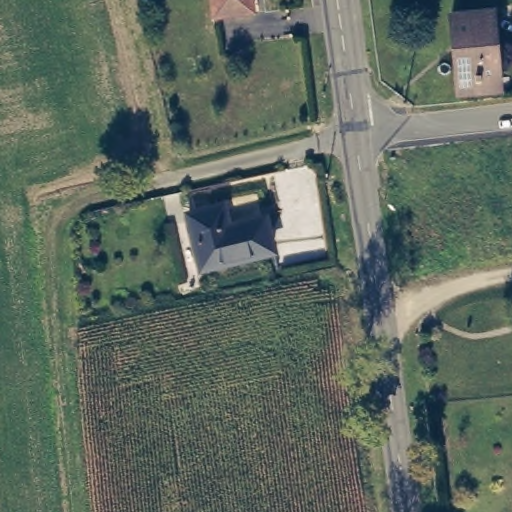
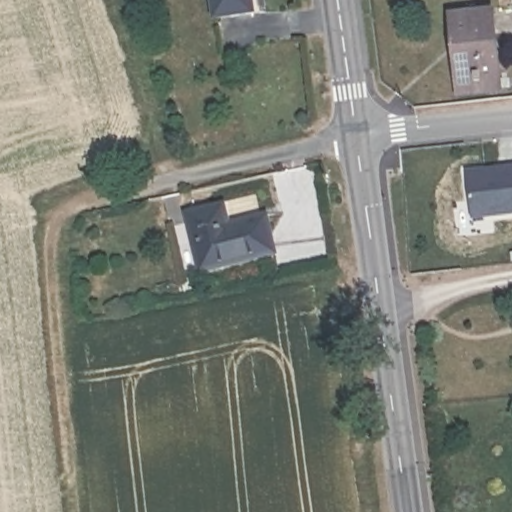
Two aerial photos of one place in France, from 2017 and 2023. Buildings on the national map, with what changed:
unchanged [(216,14),(213,0),(253,0),(255,6),(216,14)]
unchanged [(456,96),(456,83),(452,18),(492,16),(497,82),(498,95),(456,96)]
new [(465,170),(512,165),(512,214),(471,218),(465,170)]
unchanged [(215,220),(220,234),(260,227),(270,256),(226,269),(223,265),(201,270),(186,228),(215,220)]

